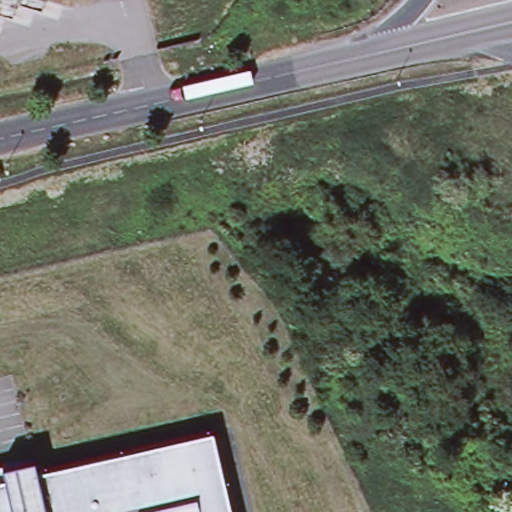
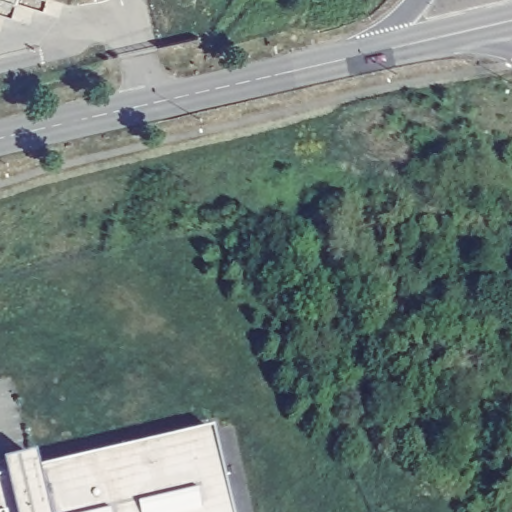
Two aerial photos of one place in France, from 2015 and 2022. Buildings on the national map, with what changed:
unchanged [(0,461),(13,458),(25,456),(28,455),(31,468),(184,435),(193,433),(206,427),(210,449),(213,464),(225,512),(0,512),(0,461)]

